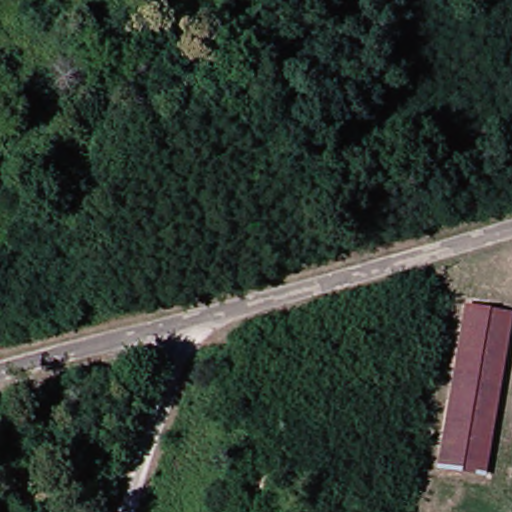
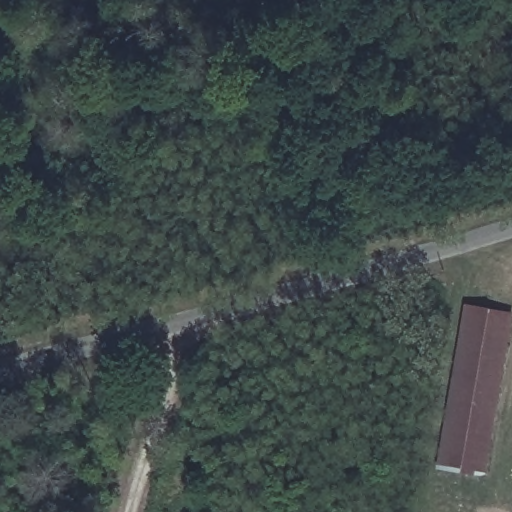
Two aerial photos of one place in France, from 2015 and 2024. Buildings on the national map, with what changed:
unchanged [(496,466),(453,463),(466,305),(509,308),(496,466)]

